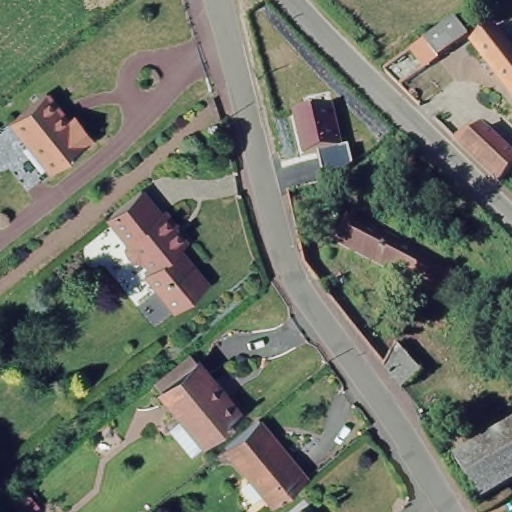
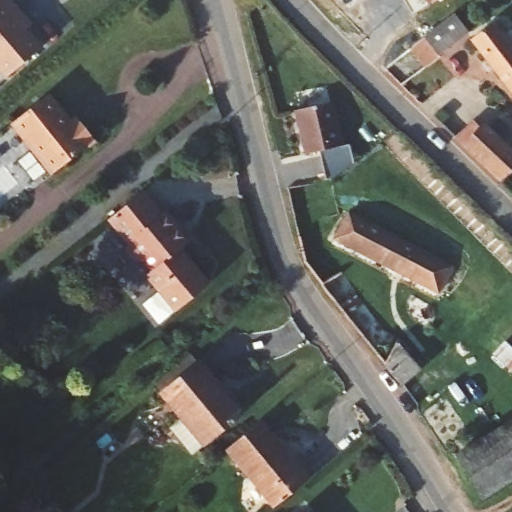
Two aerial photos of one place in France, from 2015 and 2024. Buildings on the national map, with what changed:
new [(0,0),(10,0),(31,25),(25,30),(40,47),(3,79),(0,74),(0,0)]
new [(342,0),(353,0),(345,5),(342,0)]
new [(429,4),(427,0),(435,0),(429,4)]
unchanged [(450,20),(463,36),(435,58),(418,72),(402,55),(421,41),(450,20)]
unchanged [(470,39),(495,20),(512,43),(512,94),(470,39)]
unchanged [(53,94),(66,108),(66,112),(65,113),(72,124),(80,118),(100,140),(55,175),(15,125),(53,94)]
unchanged [(340,145),(347,143),(347,144),(355,173),(326,179),(320,151),(303,154),(293,106),(331,99),(340,145)]
unchanged [(483,126),(512,156),(512,164),(495,180),(457,146),(483,126)]
unchanged [(146,191),(165,214),(170,210),(183,226),(180,229),(192,244),(185,250),(195,263),(163,293),(151,277),(156,273),(148,262),(145,264),(140,264),(137,262),(133,259),(132,254),(133,249),(135,245),(113,219),(146,191)]
unchanged [(347,218),(361,225),(448,271),(443,281),(436,297),(333,244),(347,218)]
unchanged [(398,336),(426,374),(403,390),(385,366),(398,336)]
unchanged [(201,367),(242,416),(207,447),(165,398),(201,367)]
unchanged [(512,423),(512,482),(484,501),(456,460),(512,423)]
unchanged [(308,485),(277,512),(276,512),(227,455),(258,427),(308,485)]

